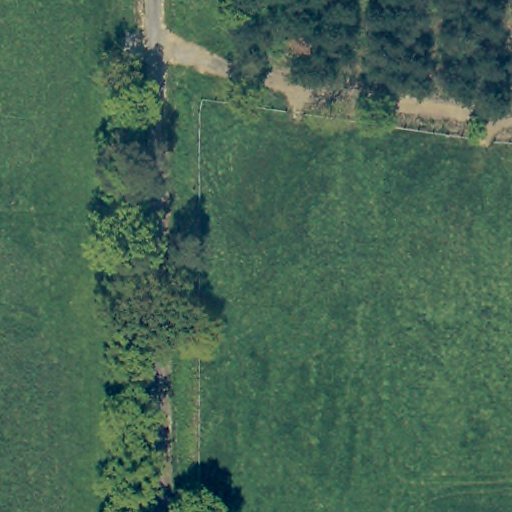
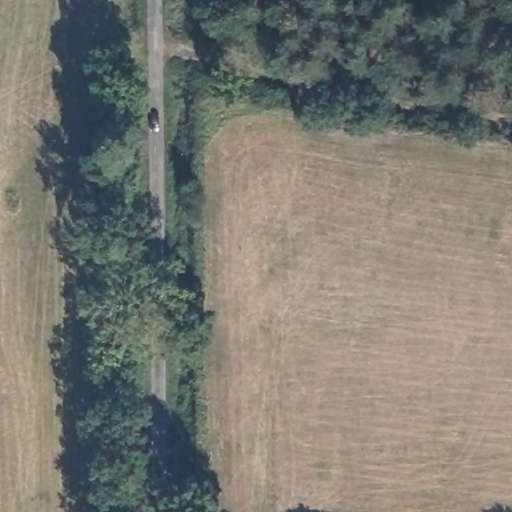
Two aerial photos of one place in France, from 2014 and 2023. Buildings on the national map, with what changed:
[]

